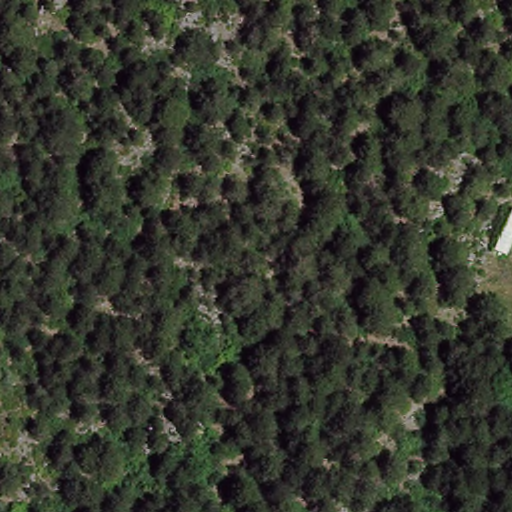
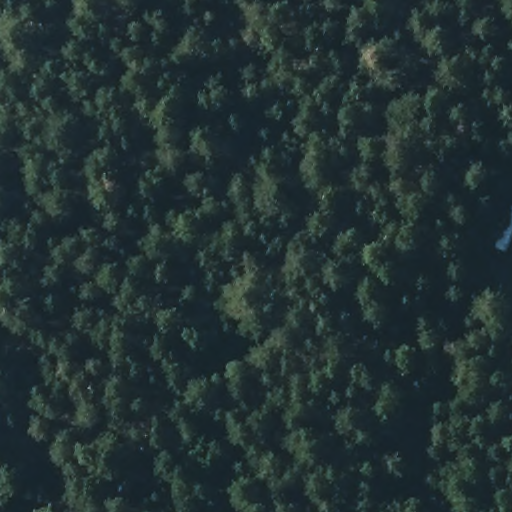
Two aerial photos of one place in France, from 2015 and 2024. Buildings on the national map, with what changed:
unchanged [(489,247),(511,202),(512,203),(512,247),(508,256),(489,247)]

